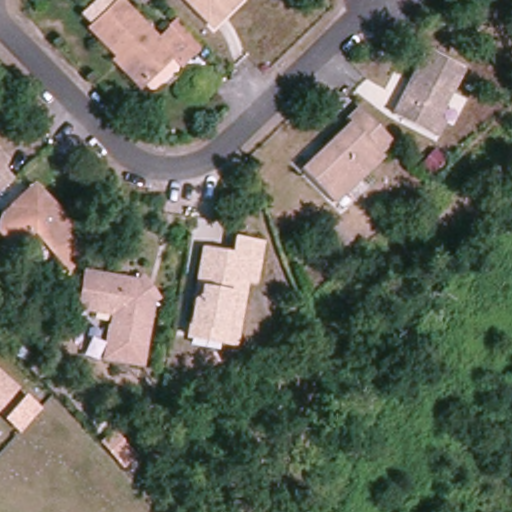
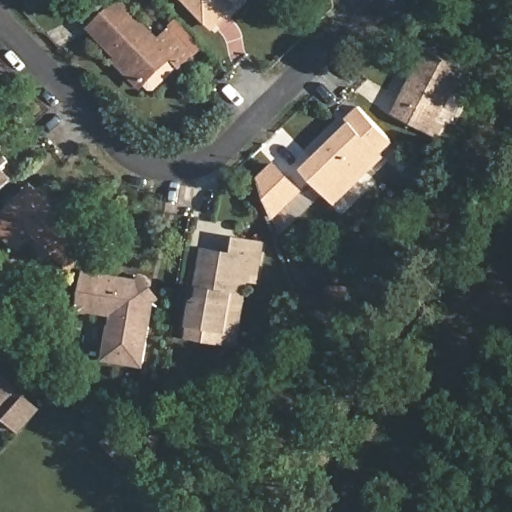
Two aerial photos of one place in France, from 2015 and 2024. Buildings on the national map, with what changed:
unchanged [(116,60),(88,31),(92,26),(81,16),(97,0),(104,0),(111,8),(115,4),(154,42),(165,30),(188,54),(151,89),(145,89),(141,85),(137,89),(112,64),(116,60)]
unchanged [(213,26),(186,0),(238,0),(226,12),(213,26)]
unchanged [(438,114),(443,116),(434,133),(392,113),(423,49),(459,66),(438,114)]
unchanged [(394,143),(383,153),(386,156),(336,204),(302,169),(319,153),(325,146),(350,121),(347,119),(359,107),(375,123),(394,143)]
unchanged [(2,169),(12,179),(0,192),(0,151),(9,161),(2,169)]
new [(255,179),(275,162),(304,192),(271,220),(255,179)]
unchanged [(32,229),(23,237),(8,238),(0,229),(0,220),(2,213),(31,184),(74,228),(53,249),(32,229)]
unchanged [(203,254),(233,259),(235,243),(262,247),(256,286),(247,284),(234,283),(227,335),(191,329),(195,304),(197,293),(203,254)]
unchanged [(140,295),(146,304),(152,308),(143,368),(105,362),(109,330),(118,325),(118,321),(112,314),(89,309),(82,314),(78,314),(85,276),(139,285),(140,295)]
unchanged [(227,335),(234,283),(247,284),(237,349),(189,341),(191,329),(227,335)]
unchanged [(0,410),(0,374),(17,389),(0,410)]
unchanged [(112,426),(142,454),(126,471),(98,441),(112,426)]

